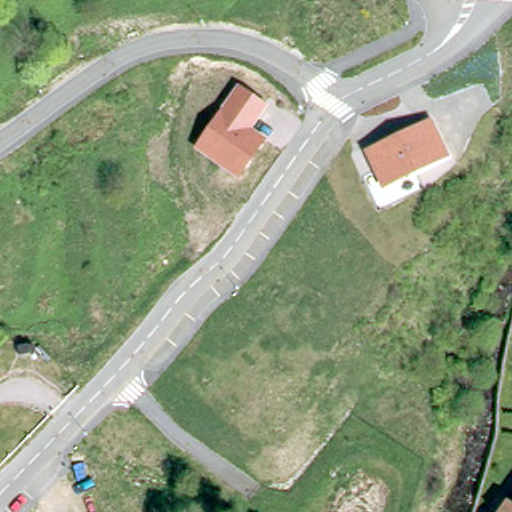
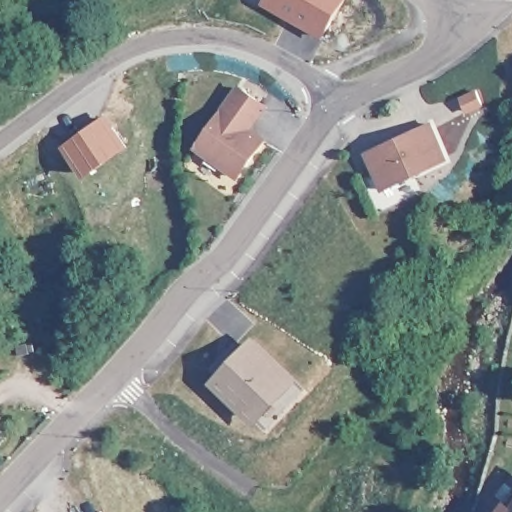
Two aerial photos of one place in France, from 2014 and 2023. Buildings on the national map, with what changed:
new [(345,0),(322,40),(259,5),(262,0),(345,0)]
unchanged [(267,139),(238,180),(193,148),(237,85),(267,105),(253,129),(267,139)]
new [(106,119),(125,146),(88,173),(68,145),(106,119)]
unchanged [(431,121),(450,160),(382,191),(364,151),(431,121)]
new [(216,375),(210,370),(235,342),(242,349),(254,336),(301,380),(257,428),(208,383),(216,375)]
unchanged [(508,508),(512,511),(512,512),(505,512),(508,508)]

